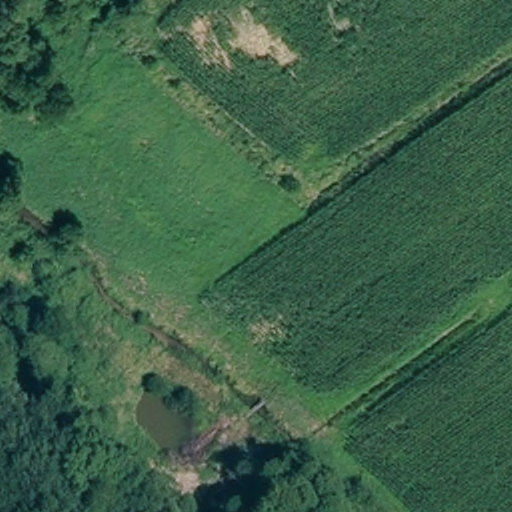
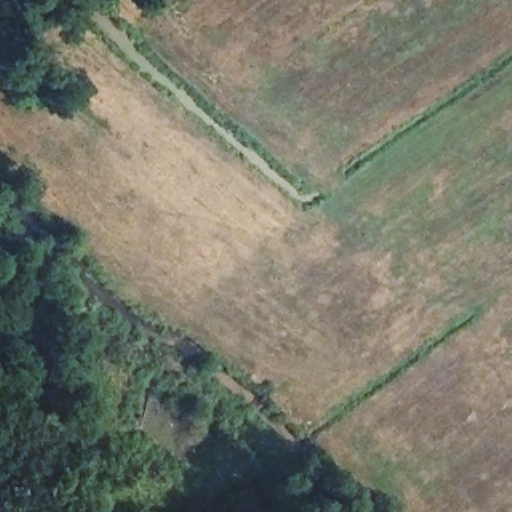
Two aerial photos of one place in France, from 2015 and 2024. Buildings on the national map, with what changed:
[]

